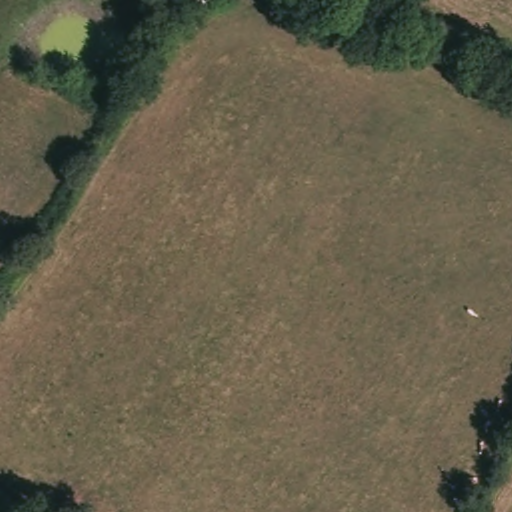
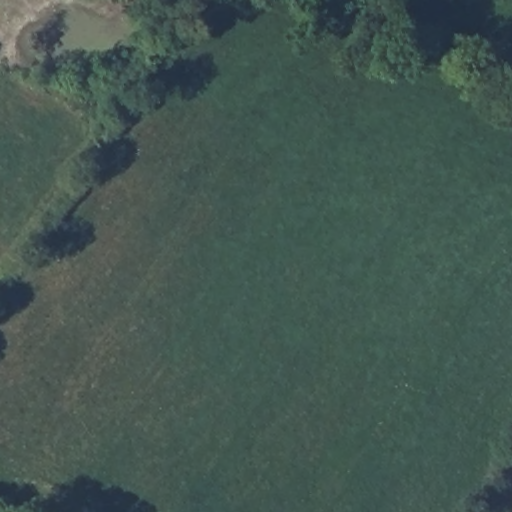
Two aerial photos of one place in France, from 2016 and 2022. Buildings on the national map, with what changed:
[]

